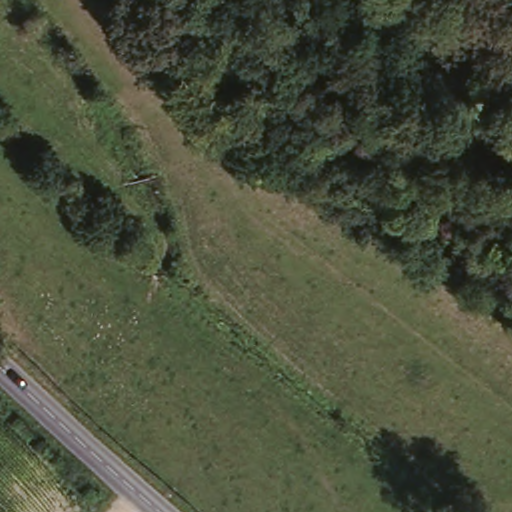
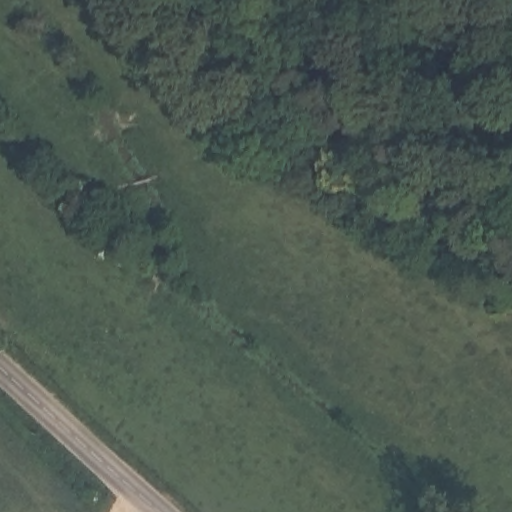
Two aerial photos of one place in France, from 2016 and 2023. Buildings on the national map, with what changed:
[]

